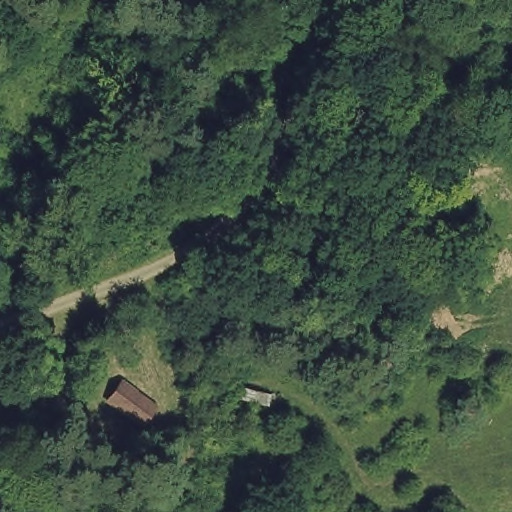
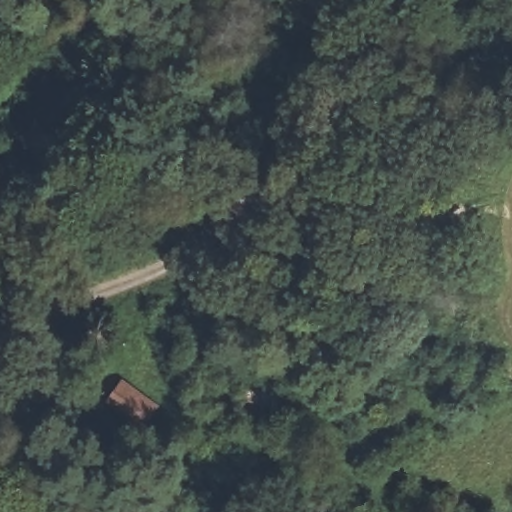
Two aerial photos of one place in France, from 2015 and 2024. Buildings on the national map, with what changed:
unchanged [(118,378),(160,408),(145,432),(102,402),(118,378)]

